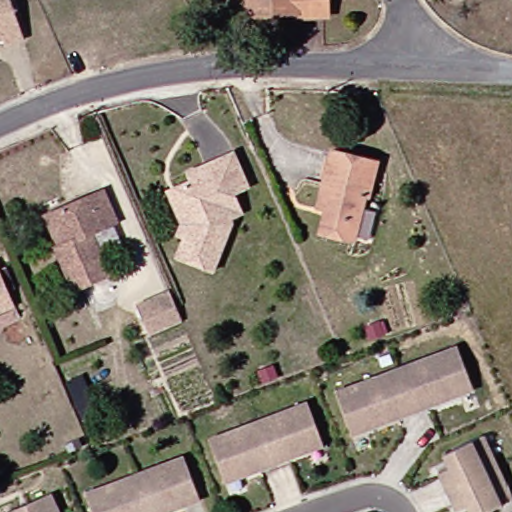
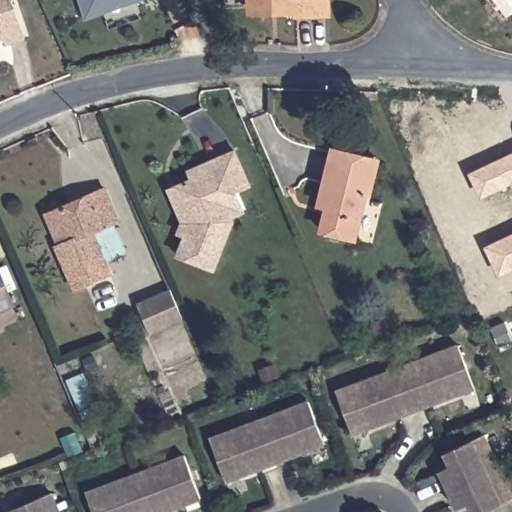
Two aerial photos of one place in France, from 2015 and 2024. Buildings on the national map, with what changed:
unchanged [(0,0),(3,0),(3,1),(14,32),(0,37),(0,0)]
unchanged [(78,0),(141,0),(86,21),(78,0)]
unchanged [(322,0),(322,9),(291,10),(291,0),(245,2),(244,0),(322,0)]
unchanged [(373,243),(355,239),(321,230),(327,207),(319,205),(322,191),(332,150),(377,160),(368,195),(366,194),(364,200),(382,204),(373,243)]
unchanged [(163,189),(170,186),(186,179),(182,171),(201,163),(229,151),(244,185),(230,192),(238,212),(226,217),(228,221),(209,270),(172,255),(179,236),(172,233),(177,221),(163,189)]
new [(483,197),(472,171),(512,152),(512,184),(483,197)]
unchanged [(112,216),(87,227),(105,269),(69,284),(51,241),(54,240),(40,210),(48,206),(99,184),(112,216)]
new [(498,278),(485,247),(512,234),(512,271),(498,278)]
unchanged [(0,281),(11,305),(0,309),(0,281)]
unchanged [(182,320),(151,332),(137,298),(167,287),(182,320)]
unchanged [(350,433),(335,390),(457,345),(472,386),(472,387),(427,405),(350,433)]
unchanged [(327,443),(228,480),(213,437),(311,401),(327,443)]
unchanged [(478,511),(472,498),(461,503),(443,465),(454,460),(448,447),(451,445),(455,444),(487,429),(512,485),(512,496),(485,508),(480,510),(478,511)]
unchanged [(197,497),(156,512),(92,512),(84,491),(182,455),(197,497)]
unchanged [(62,512),(5,512),(5,511),(53,491),(62,512)]

